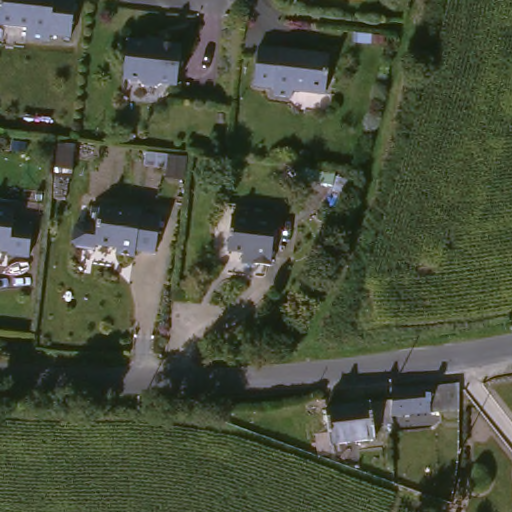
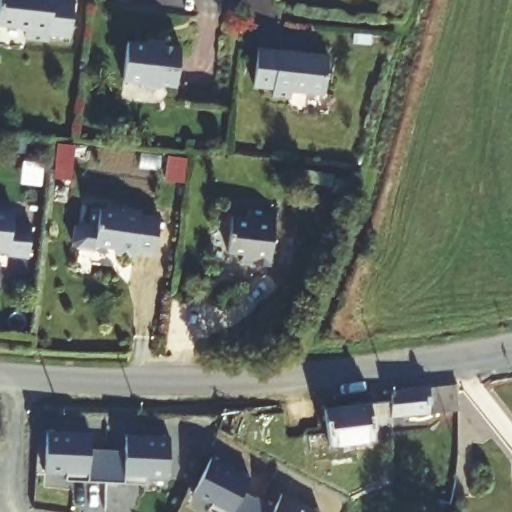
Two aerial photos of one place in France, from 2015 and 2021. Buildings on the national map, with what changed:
unchanged [(47,37),(44,45),(19,43),(19,34),(0,31),(0,0),(49,0),(49,2),(72,6),(67,40),(47,37)]
unchanged [(164,86),(150,85),(143,90),(125,90),(120,85),(107,83),(114,43),(170,47),(164,86)]
unchanged [(324,59),(318,95),(286,92),(286,100),(265,99),(266,90),(247,89),(254,50),(324,59)]
unchanged [(126,251),(124,258),(109,255),(109,250),(89,246),(92,232),(82,230),(86,214),(114,217),(119,210),(133,212),(133,219),(149,221),(142,254),(126,251)]
unchanged [(237,255),(223,253),(228,220),(244,220),(246,211),(272,213),(262,267),(234,265),(237,255)]
unchanged [(9,231),(29,234),(22,262),(4,260),(4,253),(0,253),(0,216),(12,217),(9,231)]
unchanged [(430,393),(453,385),(451,417),(382,423),(379,406),(379,398),(430,393)]
unchanged [(353,428),(349,443),(313,445),(310,413),(379,406),(382,423),(381,426),(353,428)]
new [(114,476),(77,475),(55,475),(55,468),(34,467),(35,426),(79,427),(79,444),(114,445),(114,428),(163,438),(158,470),(137,470),(137,477),(114,476)]
new [(218,511),(198,501),(200,497),(182,485),(205,458),(245,477),(238,492),(269,508),(277,493),(314,512),(219,512),(218,511)]

